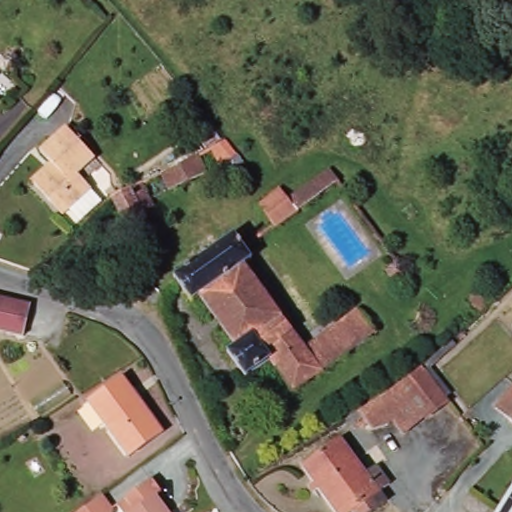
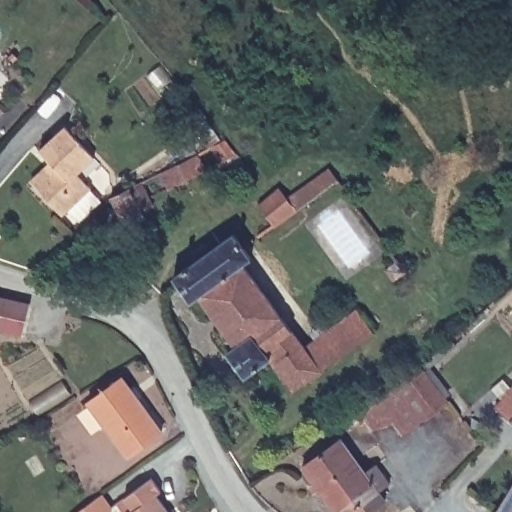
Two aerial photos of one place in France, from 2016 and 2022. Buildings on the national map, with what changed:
unchanged [(52,159),(42,149),(67,126),(101,164),(84,179),(92,189),(64,215),(35,185),(31,180),(52,159)]
unchanged [(235,141),(255,167),(244,174),(237,162),(231,167),(220,149),(235,141)]
unchanged [(204,157),(209,155),(218,172),(180,192),(170,174),(204,157)]
unchanged [(269,199),(281,189),(288,197),(290,198),(330,169),(340,182),(276,229),(260,207),(269,199)]
unchanged [(125,191),(142,182),(155,207),(144,212),(147,220),(127,230),(111,197),(125,191)]
unchanged [(191,303),(174,279),(234,236),(245,252),(252,261),(244,267),(245,267),(275,313),(290,331),(305,348),(350,317),(357,311),(375,335),(373,336),(323,372),(292,391),(278,372),(276,372),(268,362),(245,379),(227,355),(236,348),(200,297),(191,303)]
unchanged [(409,263),(417,275),(405,284),(396,272),(409,263)]
unchanged [(4,301),(19,301),(19,327),(0,327),(0,296),(4,296),(4,301)]
unchanged [(408,381),(422,367),(448,402),(425,420),(423,417),(395,424),(388,416),(371,430),(358,413),(377,401),(408,381)]
unchanged [(123,380),(161,436),(125,460),(88,404),(123,380)]
unchanged [(512,391),(512,421),(511,420),(496,408),(512,391)]
unchanged [(380,507),(373,512),(356,512),(355,511),(354,512),(335,512),(302,468),(341,439),(367,473),(378,464),(392,482),(381,491),(388,501),(380,507)]
unchanged [(130,507),(121,495),(145,478),(154,491),(169,512),(122,512),(130,507)]
unchanged [(512,487),(512,512),(496,512),(512,487)]
unchanged [(80,512),(89,505),(110,490),(120,503),(120,510),(116,512),(79,512),(80,512)]

